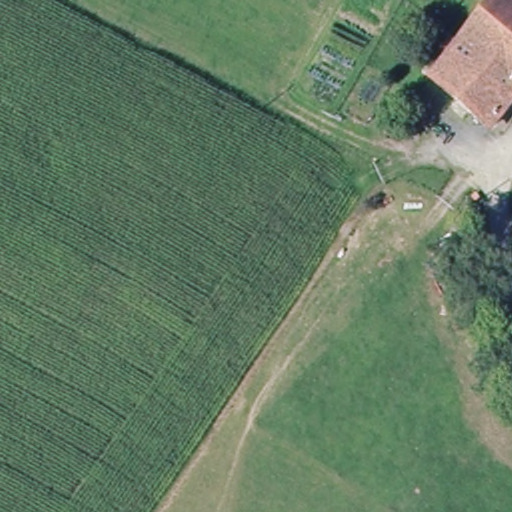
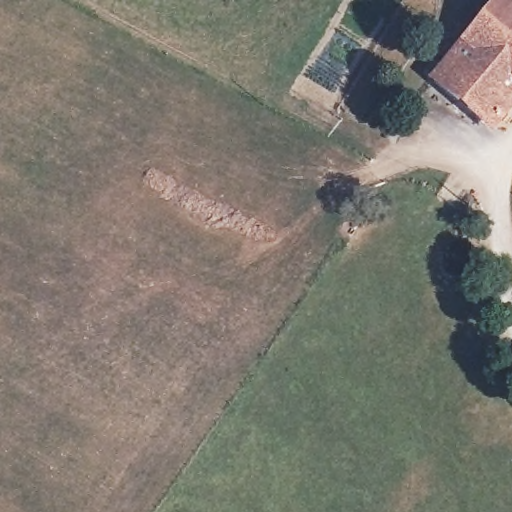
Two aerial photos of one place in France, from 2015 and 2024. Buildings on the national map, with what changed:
unchanged [(496,127),(437,82),(460,52),(502,0),(512,0),(512,107),(496,127)]

